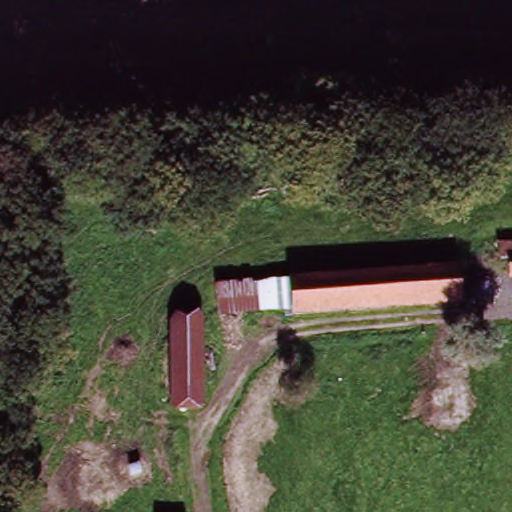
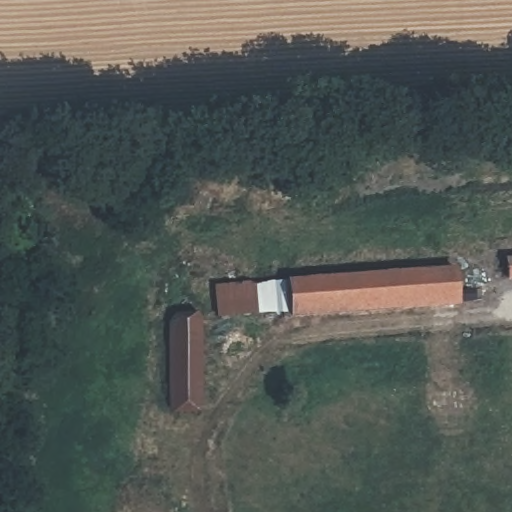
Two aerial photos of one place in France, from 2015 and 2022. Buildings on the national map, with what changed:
unchanged [(280,193),(278,166),(318,164),(319,191),(280,193)]
unchanged [(512,259),(512,284),(502,285),(500,260),(512,259)]
unchanged [(289,324),(290,312),(214,323),(210,293),(285,285),(370,279),(370,265),(402,264),(405,275),(457,271),(457,311),(289,324)]
unchanged [(201,412),(166,413),(165,333),(200,330),(201,412)]

